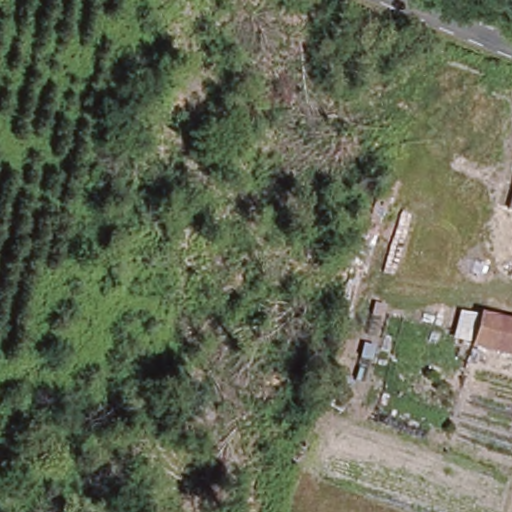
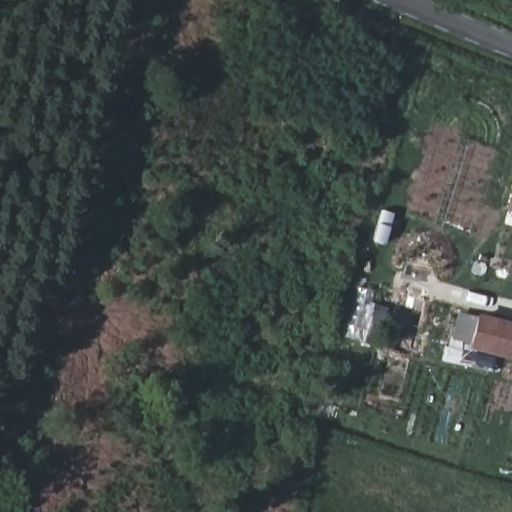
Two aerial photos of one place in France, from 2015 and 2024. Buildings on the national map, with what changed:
unchanged [(506,210),(512,189),(512,212),(506,210)]
unchanged [(512,326),(512,357),(468,345),(477,316),(512,326)]

